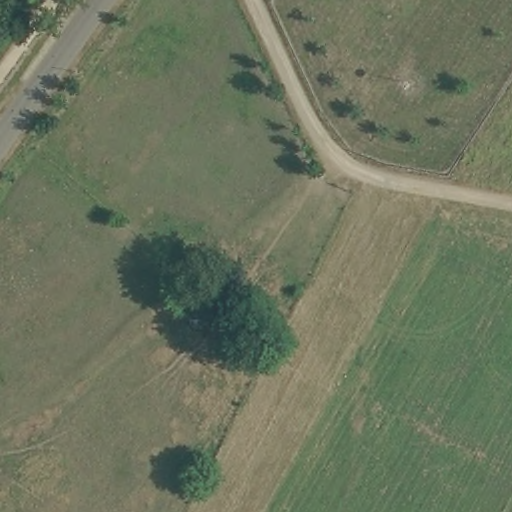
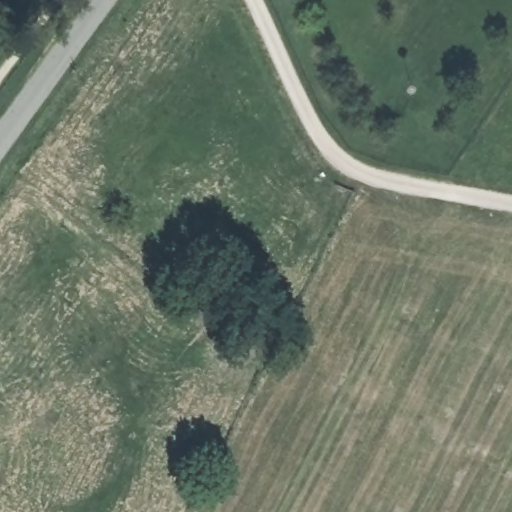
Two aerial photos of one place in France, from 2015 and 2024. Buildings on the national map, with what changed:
unchanged [(229,273),(246,289),(219,315),(204,299),(229,273)]

